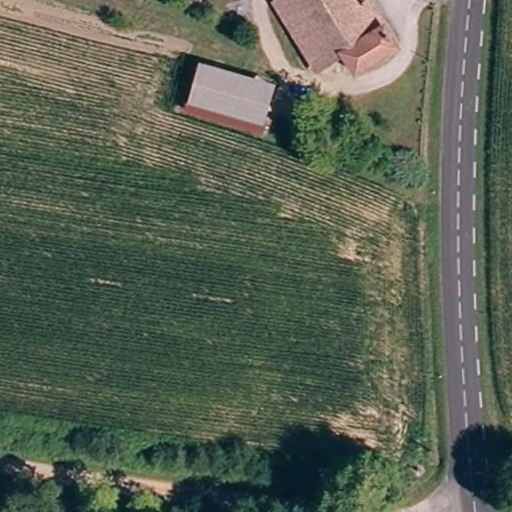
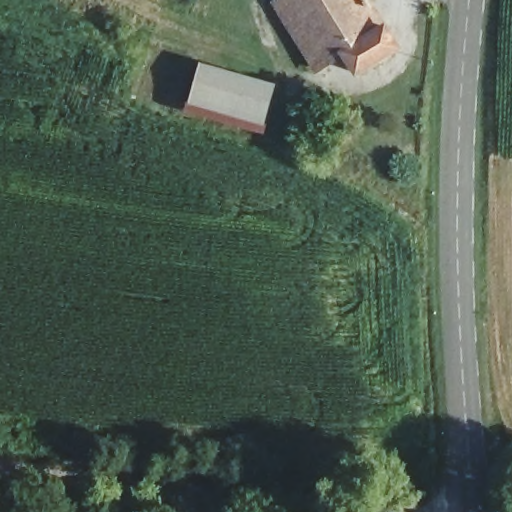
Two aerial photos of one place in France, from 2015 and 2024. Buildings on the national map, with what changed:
unchanged [(356,64),(343,44),(317,55),(305,38),(282,0),(372,0),(397,42),(356,64)]
unchanged [(293,69),(315,66),(325,99),(301,105),(293,69)]
unchanged [(190,107),(201,70),(275,95),(261,130),(190,107)]

